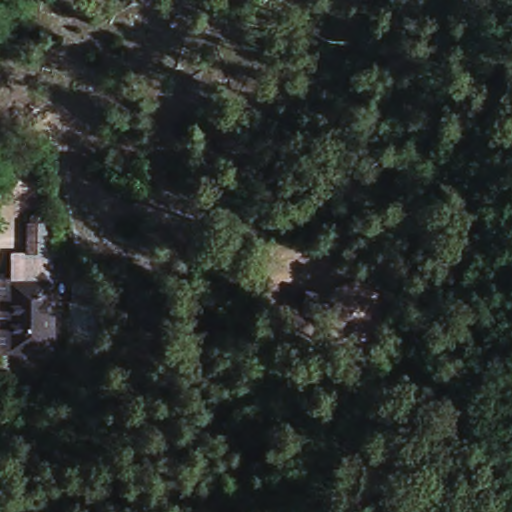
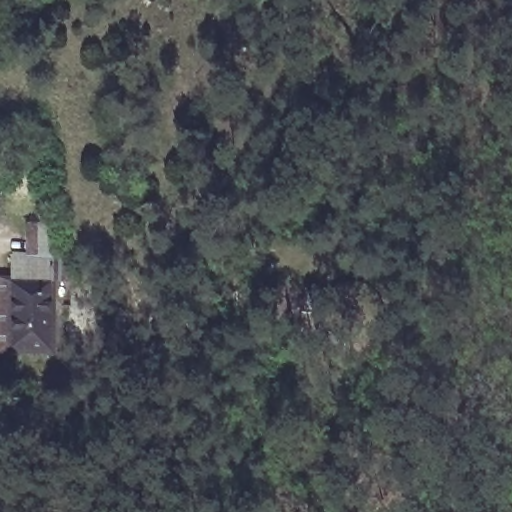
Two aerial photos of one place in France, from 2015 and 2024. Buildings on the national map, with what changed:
unchanged [(21,275),(22,253),(36,250),(38,224),(63,224),(65,352),(18,354),(15,278),(21,275)]
unchanged [(285,291),(288,289),(290,288),(293,287),(297,284),(300,284),(305,282),(309,282),(312,283),(317,284),(322,286),(326,288),(329,291),(334,294),(336,298),(339,301),(284,292),(285,291)]

